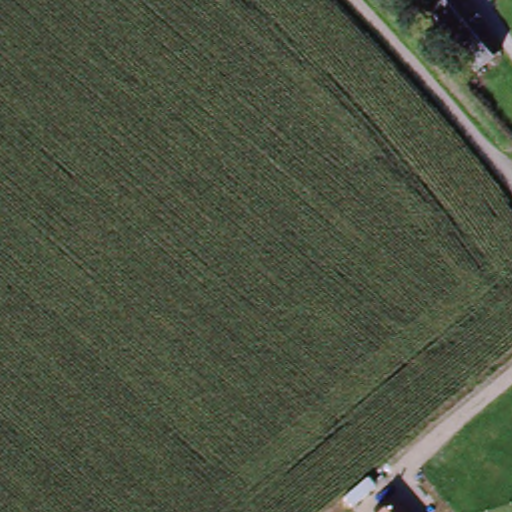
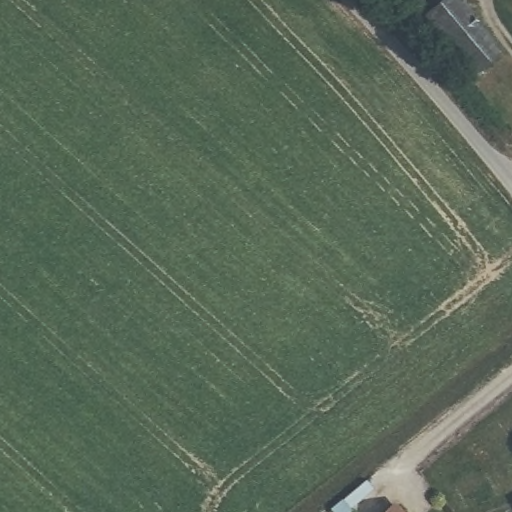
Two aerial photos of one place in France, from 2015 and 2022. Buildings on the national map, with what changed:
unchanged [(421,6),(428,0),(455,0),(501,54),(476,74),(427,16),(428,15),(421,6)]
unchanged [(402,512),(386,512),(396,504),(402,512)]

